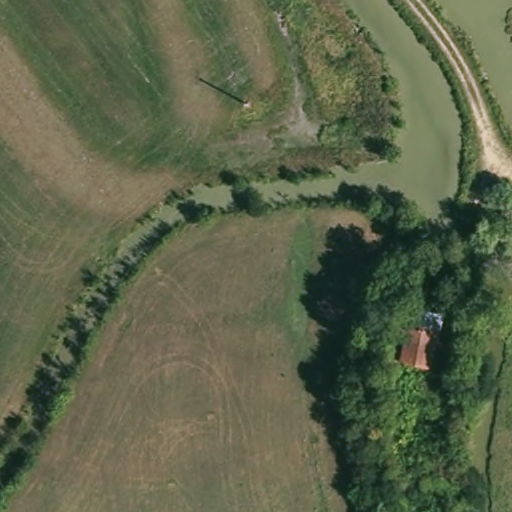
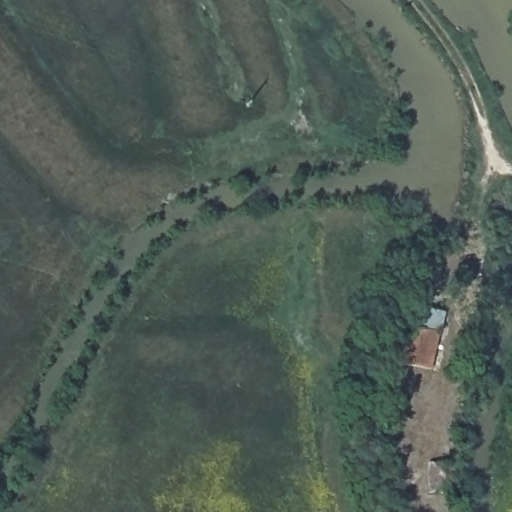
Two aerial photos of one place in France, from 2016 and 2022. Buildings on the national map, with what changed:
unchanged [(398,336),(404,313),(421,317),(425,302),(450,310),(433,388),(403,380),(415,340),(398,336)]

